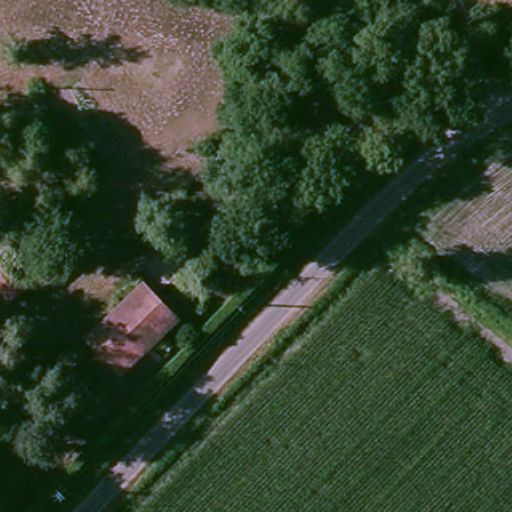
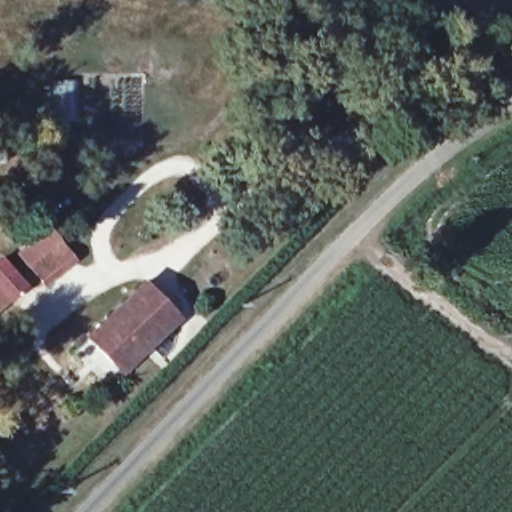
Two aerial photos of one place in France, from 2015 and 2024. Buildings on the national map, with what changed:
new [(50,225),(77,260),(45,286),(17,254),(50,225)]
demolished [(76,246),(52,264),(42,250),(66,232),(76,246)]
new [(27,287),(0,310),(0,258),(1,257),(27,287)]
unchanged [(112,368),(86,339),(141,285),(177,323),(146,352),(121,377),(112,368)]

